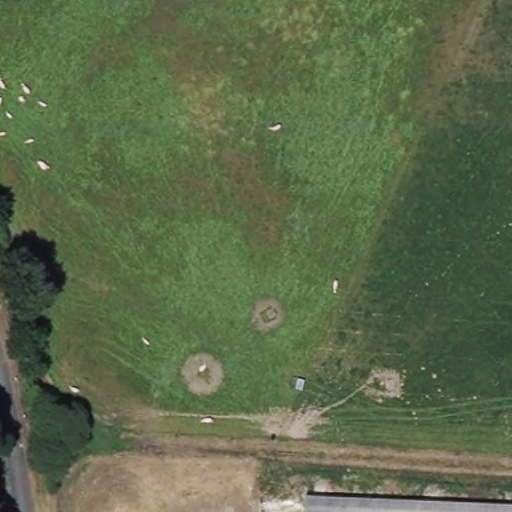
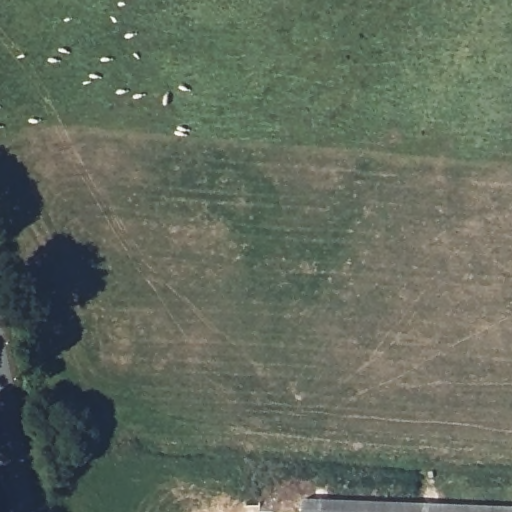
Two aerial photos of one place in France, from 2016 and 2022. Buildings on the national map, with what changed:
unchanged [(312,494),(512,505),(512,512),(311,512),(312,494)]

